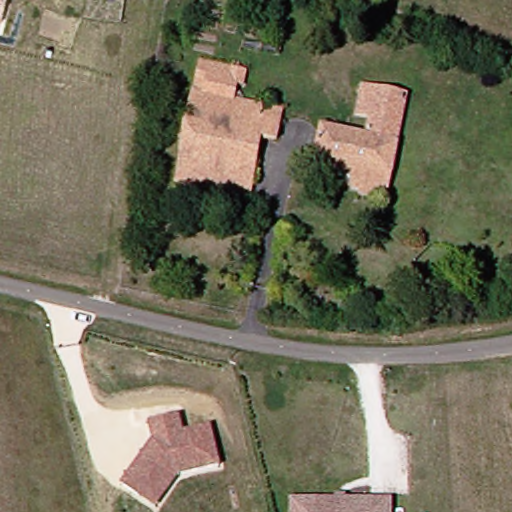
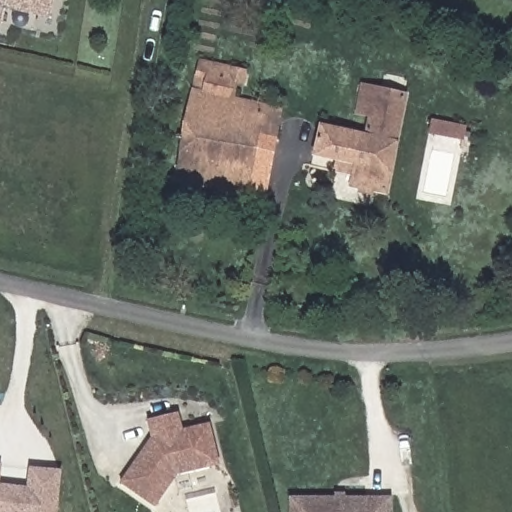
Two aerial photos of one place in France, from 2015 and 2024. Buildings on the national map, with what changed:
unchanged [(2,24),(0,24),(0,0),(7,0),(2,24)]
new [(50,18),(5,7),(7,0),(53,0),(50,18)]
unchanged [(256,67),(253,84),(245,83),(243,100),(295,108),(289,141),(272,139),(262,193),(189,179),(210,59),(256,67)]
unchanged [(344,163),(327,161),(317,160),(319,144),(330,145),(332,129),(376,135),(380,110),(365,107),(368,86),(413,92),(433,94),(431,114),(410,110),(396,191),(362,186),(363,173),(343,170),(344,163)]
unchanged [(142,495),(123,483),(146,449),(154,438),(150,420),(175,414),(180,431),(212,423),(222,463),(180,474),(169,490),(158,506),(142,495)]
new [(62,470),(57,512),(0,512),(0,463),(3,463),(0,485),(28,489),(31,467),(62,470)]
unchanged [(394,512),(307,512),(307,500),(393,499),(394,512)]
unchanged [(307,500),(307,512),(296,512),(295,500),(307,500)]

